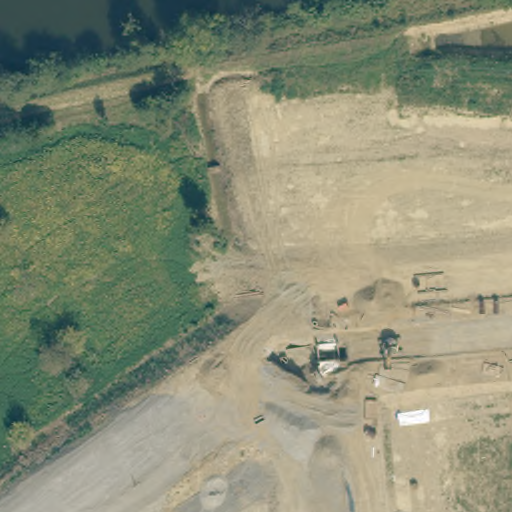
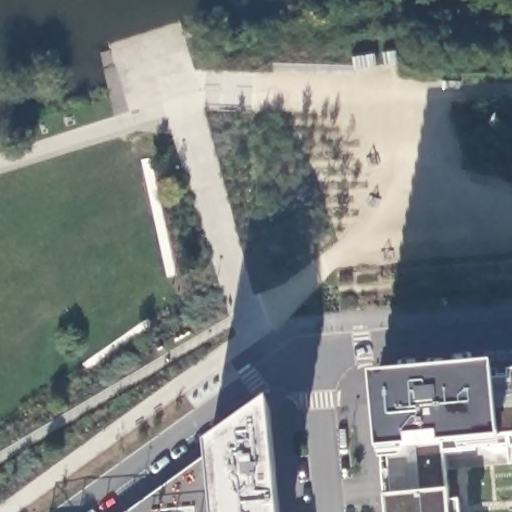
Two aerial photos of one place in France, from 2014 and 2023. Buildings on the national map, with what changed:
new [(382,467),(375,392),(495,381),(512,380),(512,512),(389,512),(388,507),(382,467)]
new [(269,410),(279,512),(213,512),(207,457),(269,410)]
new [(213,512),(131,512),(207,457),(213,512)]

